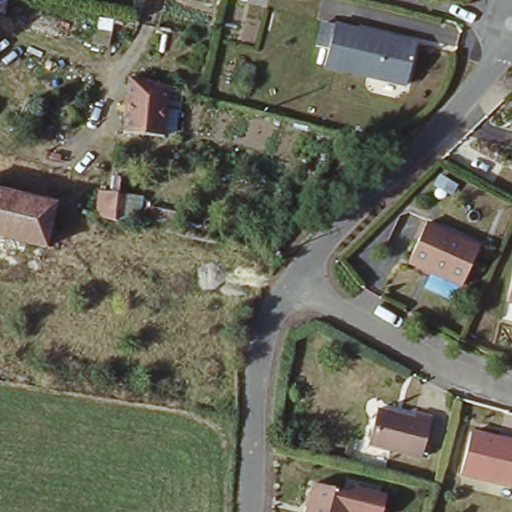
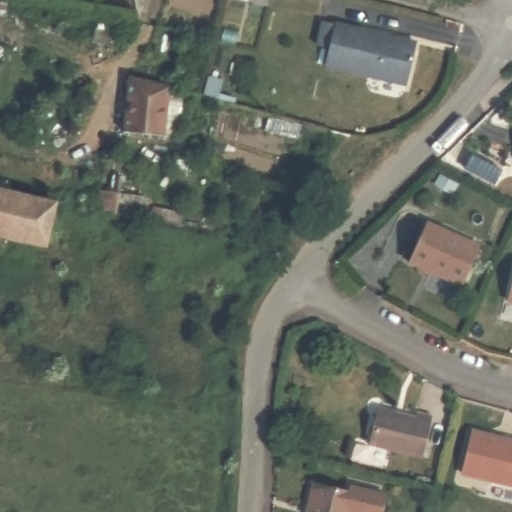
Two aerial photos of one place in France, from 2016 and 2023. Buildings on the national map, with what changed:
unchanged [(360,49),(364,31),(417,41),(405,86),(334,70),(339,45),(360,49)]
unchanged [(132,78),(172,83),(167,131),(126,127),(132,78)]
unchanged [(49,246),(25,241),(19,262),(0,257),(0,186),(59,200),(49,246)]
unchanged [(103,192),(120,195),(141,200),(135,225),(100,215),(103,192)]
unchanged [(476,253),(458,291),(405,268),(422,230),(476,253)]
unchanged [(505,307),(512,273),(512,308),(505,307)]
unchanged [(415,417),(416,412),(431,416),(421,453),(367,442),(376,408),(415,417)]
unchanged [(468,473),(477,430),(512,438),(512,483),(468,473)]
unchanged [(358,495),(354,512),(317,512),(310,509),(316,486),(358,495)]

